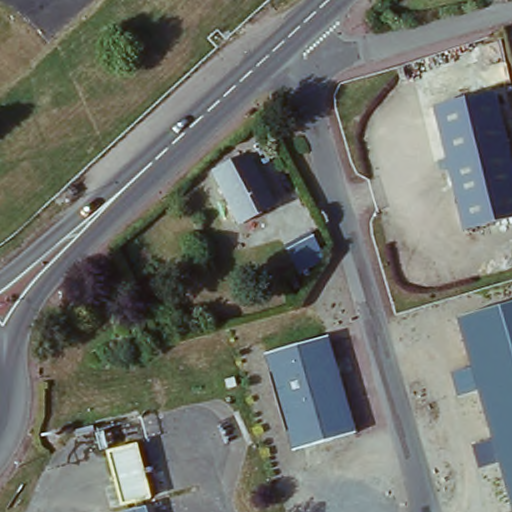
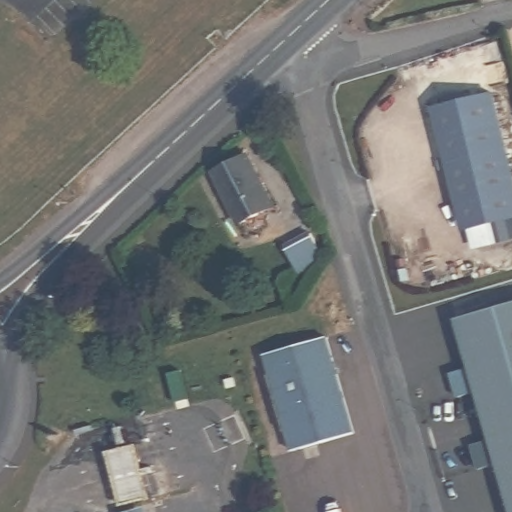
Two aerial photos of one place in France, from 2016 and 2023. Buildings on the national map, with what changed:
unchanged [(485,89),(512,177),(512,211),(465,223),(429,104),(485,89)]
unchanged [(246,151),(270,204),(239,219),(215,165),(246,151)]
unchanged [(280,232),(296,256),(271,271),(256,247),(280,232)]
unchanged [(498,464),(478,467),(472,446),(493,441),(478,394),(457,397),(451,376),(472,370),(457,320),(512,303),(512,510),(498,464)]
unchanged [(321,333),(349,434),(288,450),(261,350),(321,333)]
unchanged [(131,438),(146,492),(119,499),(105,444),(131,438)]
unchanged [(115,512),(115,511),(141,505),(143,512),(115,512)]

